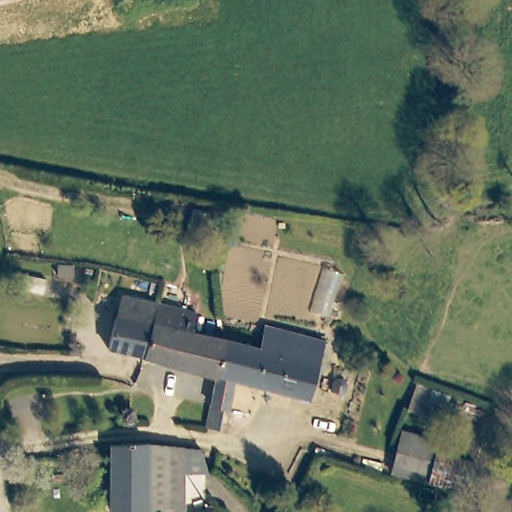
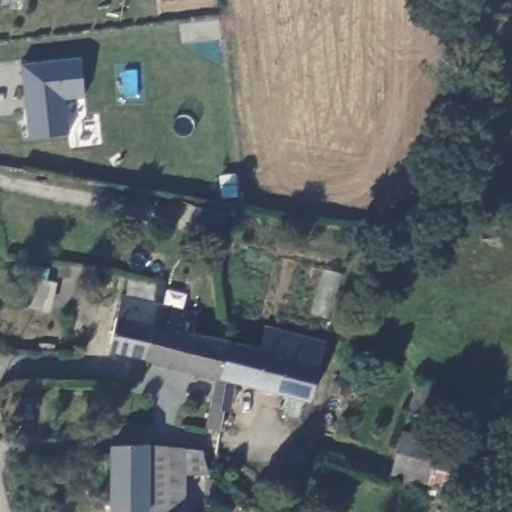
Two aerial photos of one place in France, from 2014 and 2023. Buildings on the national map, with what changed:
new [(84,96),(65,99),(69,133),(28,138),(19,63),(78,57),(84,96)]
new [(192,210),(215,215),(210,236),(187,231),(192,210)]
unchanged [(125,295),(158,304),(145,356),(111,347),(125,295)]
unchanged [(158,304),(194,314),(188,333),(195,335),(224,343),(215,376),(145,356),(158,304)]
unchanged [(215,376),(224,343),(256,352),(264,331),(325,347),(306,402),(237,383),(228,412),(222,411),(217,428),(207,425),(215,376)]
unchanged [(451,389),(445,419),(406,412),(412,381),(451,389)]
unchanged [(437,437),(436,451),(480,460),(473,492),(391,475),(399,428),(437,437)]
unchanged [(156,450),(185,451),(185,463),(188,512),(114,512),(114,451),(156,450)]

